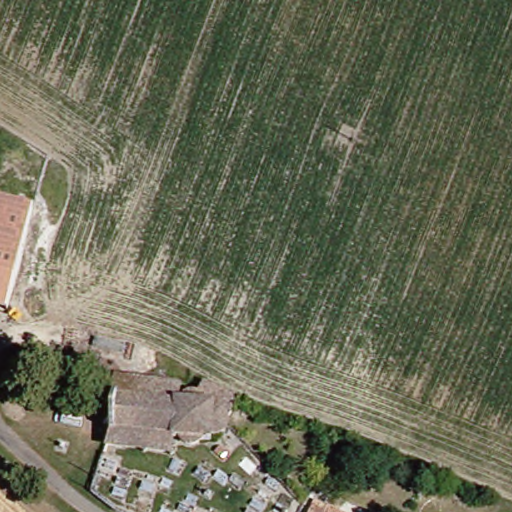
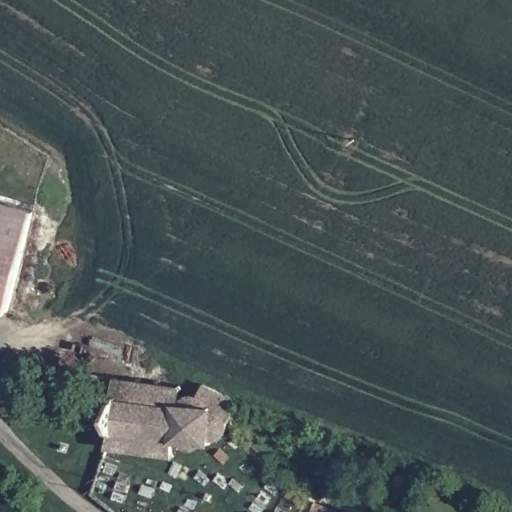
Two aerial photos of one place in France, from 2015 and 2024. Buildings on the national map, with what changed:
unchanged [(38,211),(13,313),(0,310),(0,202),(38,211)]
unchanged [(116,426),(120,394),(122,378),(161,383),(162,375),(170,377),(169,385),(182,386),(183,380),(191,381),(192,388),(204,390),(208,386),(216,387),(234,398),(239,409),(239,421),(235,433),(228,438),(216,441),(203,442),(197,440),(192,436),(183,435),(181,451),(184,458),(177,461),(173,454),(155,452),(114,444),(116,426)]
unchanged [(326,502),(346,512),(321,512),(326,502)]

